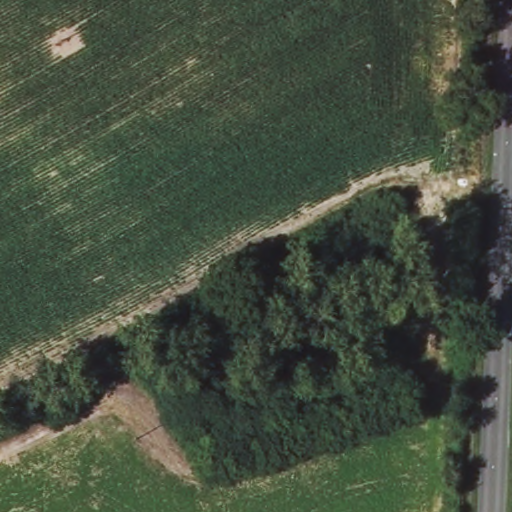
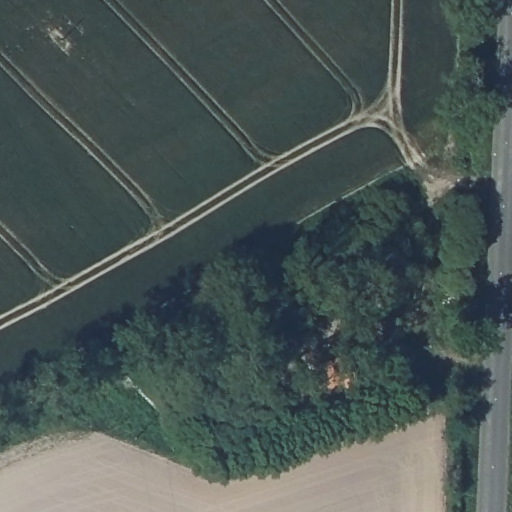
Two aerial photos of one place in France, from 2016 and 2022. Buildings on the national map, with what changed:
unchanged [(341,350),(350,381),(315,392),(308,360),(341,350)]

